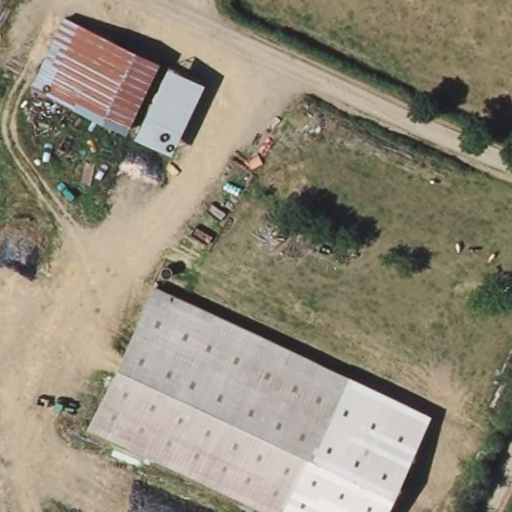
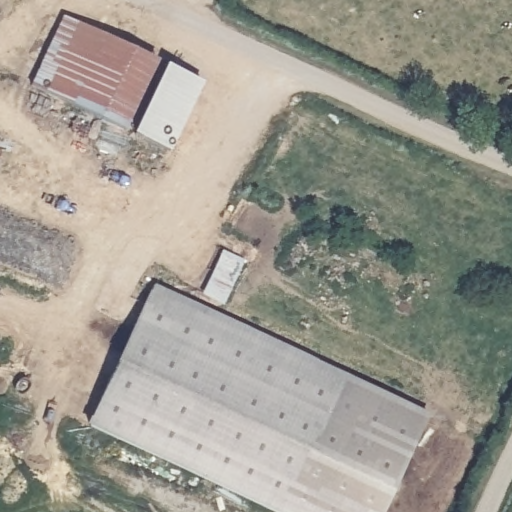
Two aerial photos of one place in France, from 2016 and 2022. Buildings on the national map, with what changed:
unchanged [(32,82),(66,13),(162,65),(126,131),(32,82)]
unchanged [(205,80),(170,151),(126,131),(162,65),(205,80)]
unchanged [(350,380),(285,512),(260,512),(81,428),(152,279),(350,380)]
unchanged [(350,380),(430,416),(387,512),(285,512),(350,380)]

